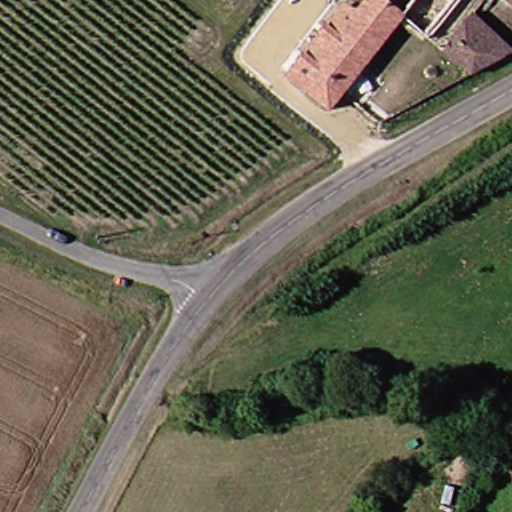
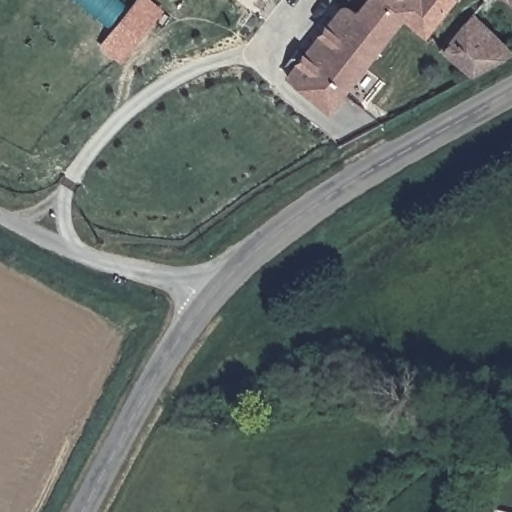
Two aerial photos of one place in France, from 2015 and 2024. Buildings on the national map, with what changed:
new [(137,0),(152,0),(165,10),(122,65),(100,49),(137,0)]
unchanged [(396,25),(358,68),(319,113),(281,83),(336,14),(355,28),(372,5),(367,0),(446,0),(416,41),(396,25)]
unchanged [(340,0),(360,0),(353,10),(340,0)]
unchanged [(512,0),(512,15),(493,0),(512,0)]
unchanged [(434,58),(466,18),(509,50),(462,76),(434,58)]
unchanged [(319,113),(358,68),(373,81),(335,126),(319,113)]
new [(502,512),(487,512),(488,509),(502,512)]

